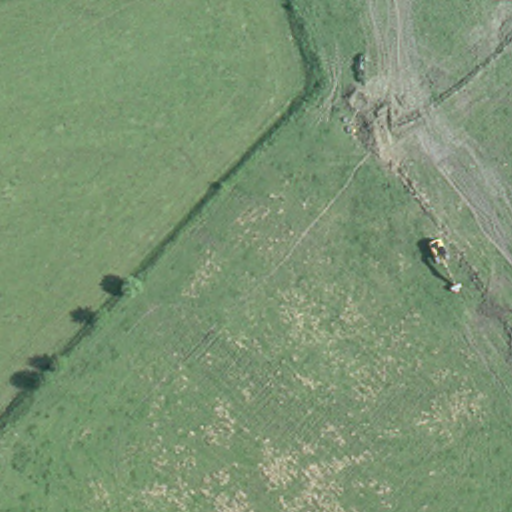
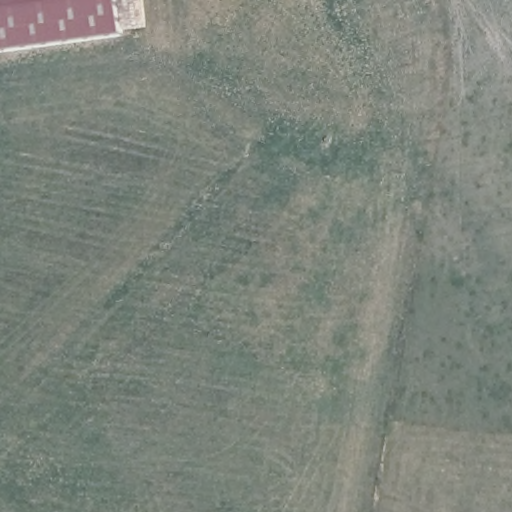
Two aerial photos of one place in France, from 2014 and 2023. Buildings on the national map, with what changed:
new [(127,36),(0,53),(0,0),(122,0),(127,36)]

